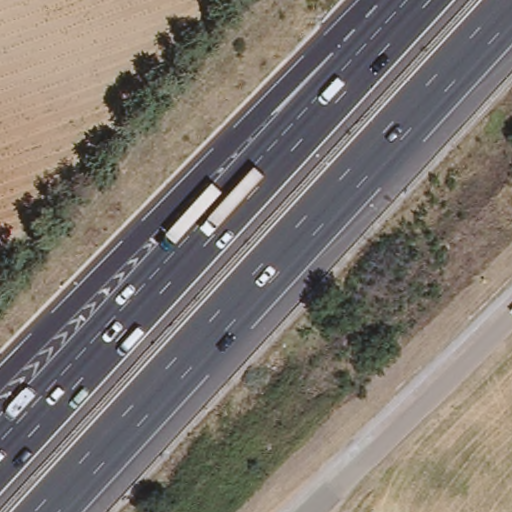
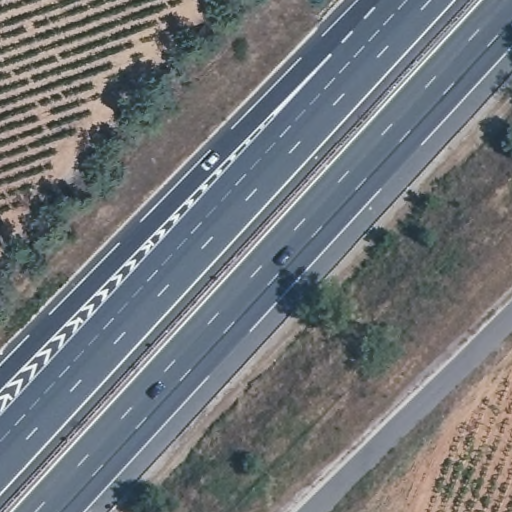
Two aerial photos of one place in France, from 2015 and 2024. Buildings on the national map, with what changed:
[]

